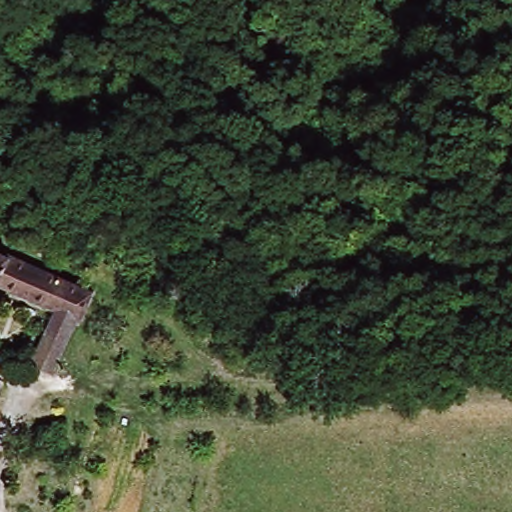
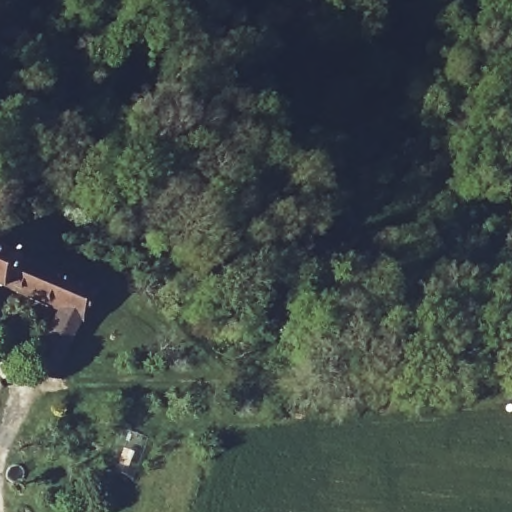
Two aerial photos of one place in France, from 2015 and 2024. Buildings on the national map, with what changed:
unchanged [(10,260),(0,282),(0,255),(10,260)]
unchanged [(90,295),(78,325),(72,323),(50,375),(25,363),(48,313),(0,292),(0,282),(10,260),(90,295)]

